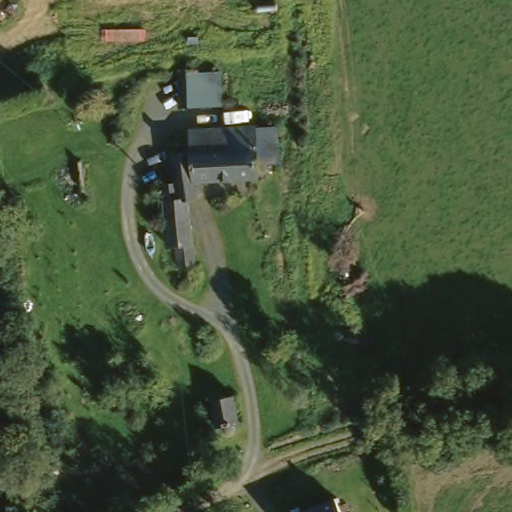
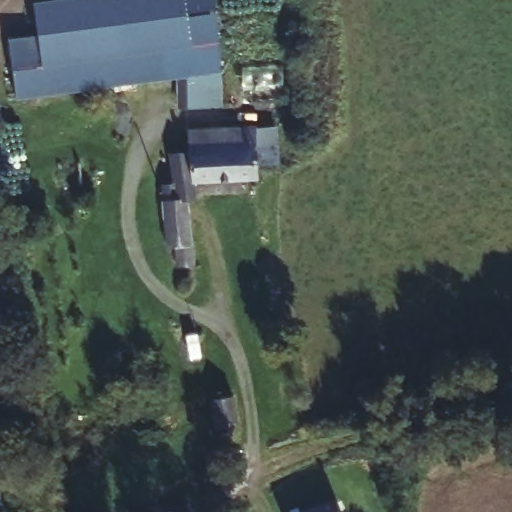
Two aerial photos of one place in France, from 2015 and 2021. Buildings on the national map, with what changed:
new [(178,110),(177,78),(18,99),(7,38),(39,34),(34,3),(55,0),(214,0),(222,72),(223,106),(178,110)]
demolished [(225,111),(217,111),(184,111),(185,72),(220,72),(226,72),(225,111)]
unchanged [(196,158),(197,130),(220,130),(254,130),(280,128),(280,167),(254,167),(254,182),(196,182),(199,197),(189,199),(199,264),(187,265),(176,267),(171,230),(166,194),(165,187),(177,185),(178,157),(196,158)]
unchanged [(238,425),(240,438),(228,440),(225,426),(217,427),(214,401),(240,397),(244,424),(238,425)]
unchanged [(69,495),(48,498),(42,448),(64,446),(69,495)]
unchanged [(339,512),(298,512),(335,500),(339,512)]

